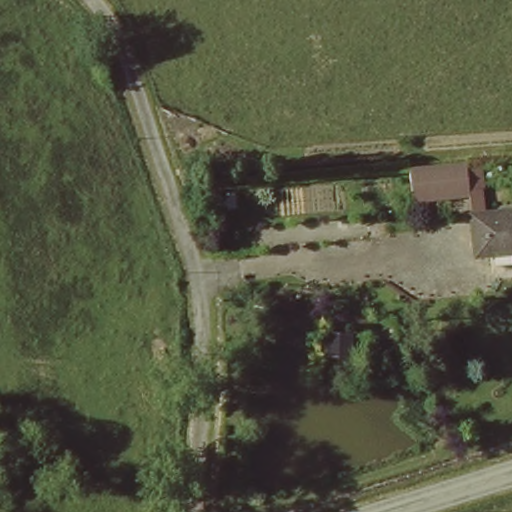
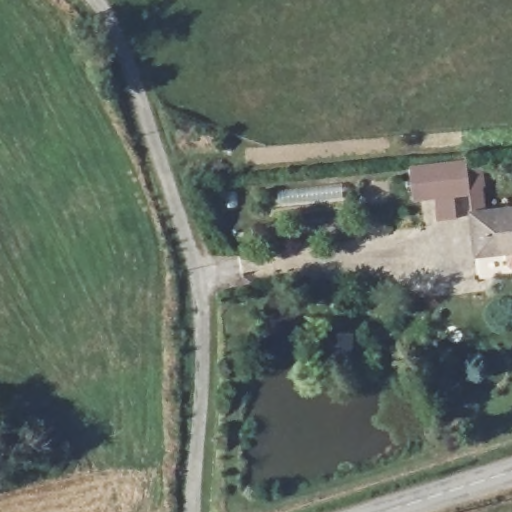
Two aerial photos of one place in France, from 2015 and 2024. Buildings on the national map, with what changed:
unchanged [(412,192),(408,161),(464,154),(469,184),(412,192)]
unchanged [(499,254),(487,255),(481,215),(512,211),(512,252),(499,254)]

